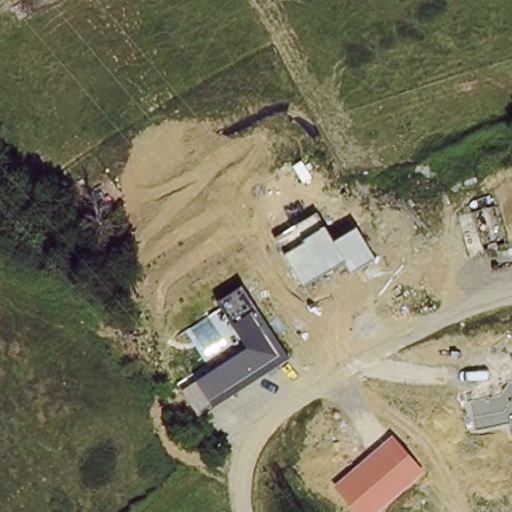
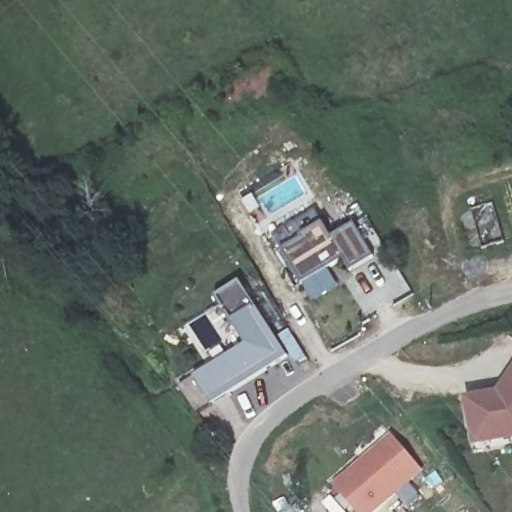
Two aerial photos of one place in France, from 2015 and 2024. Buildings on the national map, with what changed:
unchanged [(315,211),(333,240),(356,225),(376,259),(351,273),(343,261),(303,284),(276,235),(315,211)]
unchanged [(241,285),(289,358),(199,417),(180,389),(246,347),(217,299),(241,285)]
new [(512,370),(512,441),(474,446),(465,399),(498,391),(512,370)]
unchanged [(391,434),(424,472),(376,512),(355,512),(333,484),(391,434)]

